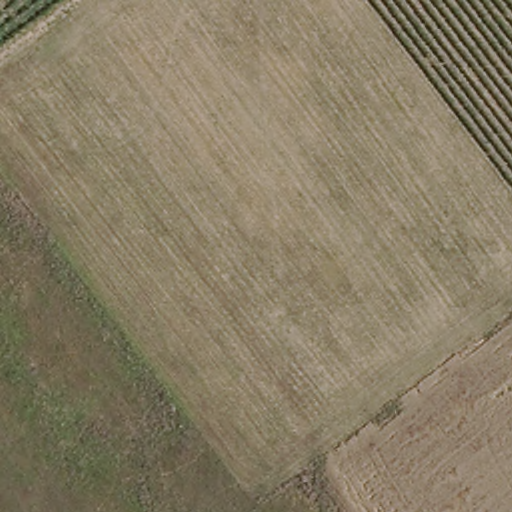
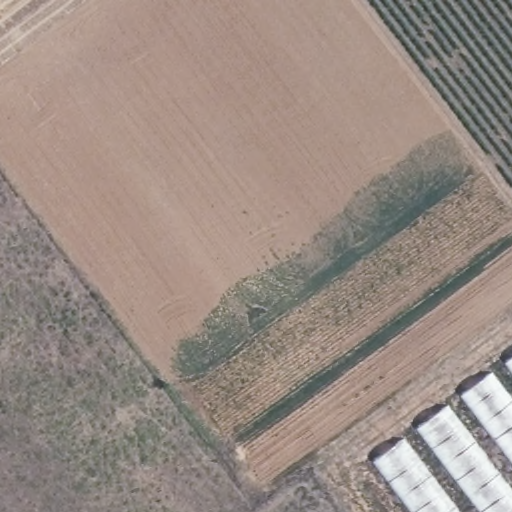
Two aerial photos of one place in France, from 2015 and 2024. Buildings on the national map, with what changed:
new [(512,357),(512,512),(412,512),(373,462),(512,357)]

